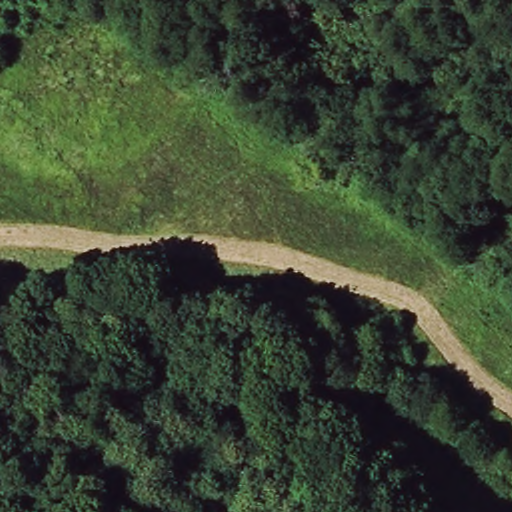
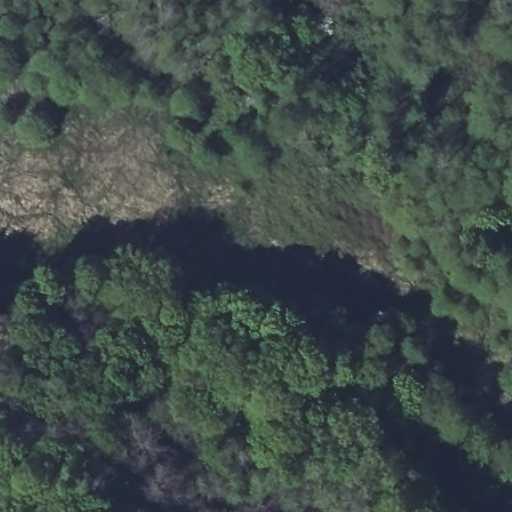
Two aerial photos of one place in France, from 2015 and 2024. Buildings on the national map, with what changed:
unchanged [(348,63),(342,70),(334,71),(325,60),(332,49),(344,50),(348,63)]

